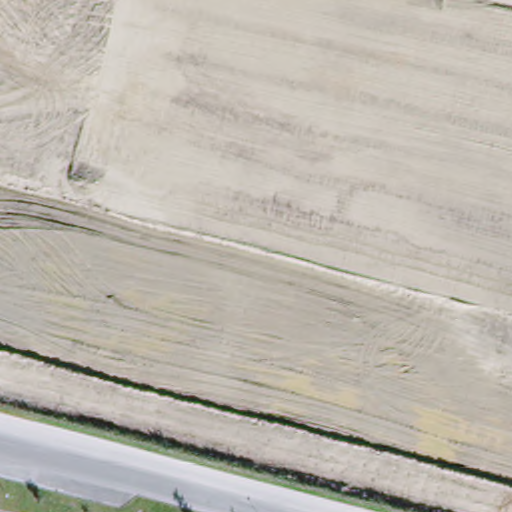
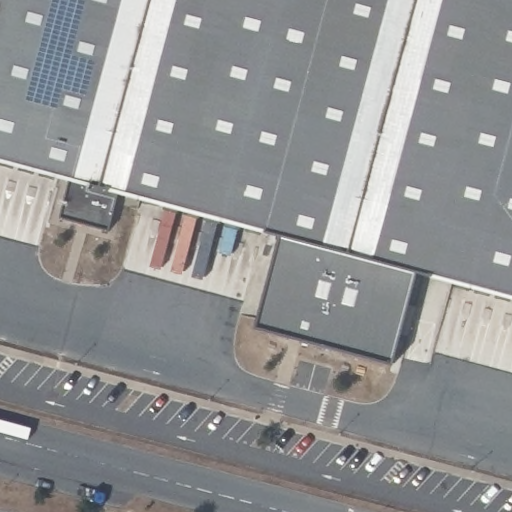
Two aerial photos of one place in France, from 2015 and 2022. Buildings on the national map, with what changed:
new [(392,361),(252,324),(277,232),(113,190),(111,225),(55,215),(59,174),(0,158),(0,0),(512,0),(512,297),(413,270),(392,361)]

